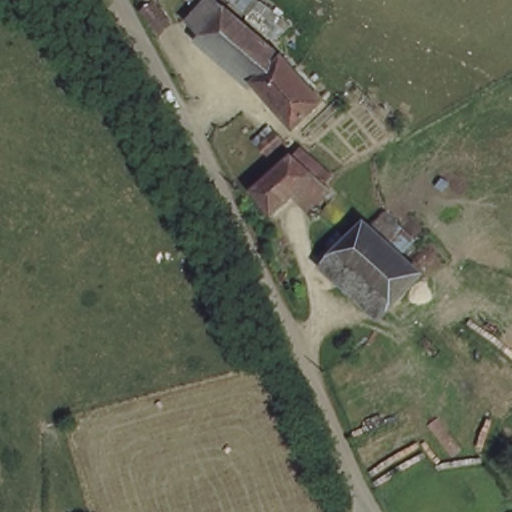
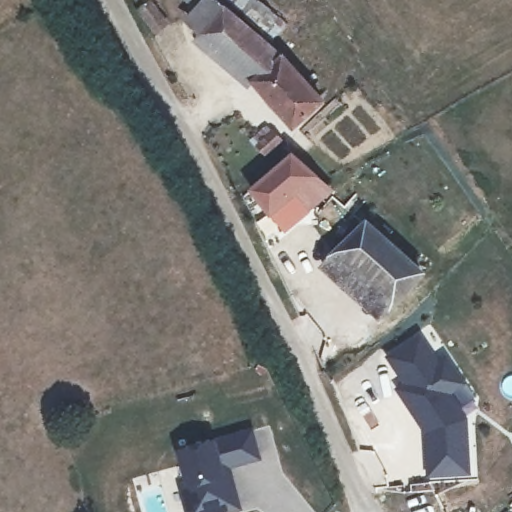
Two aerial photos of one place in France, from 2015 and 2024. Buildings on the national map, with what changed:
unchanged [(284,50),(325,96),(296,122),(191,12),(202,0),(226,0),(284,50)]
unchanged [(316,199),(302,185),(275,209),(255,185),(297,149),(317,171),(330,185),(316,199)]
unchanged [(340,247),(367,217),(424,267),(397,297),(340,247)]
unchanged [(380,315),(325,263),(340,247),(397,297),(380,315)]
new [(425,478),(422,433),(395,389),(401,383),(383,357),(417,333),(439,360),(444,356),(472,397),(460,405),(467,416),(470,475),(425,478)]
new [(184,512),(177,486),(183,484),(175,450),(214,438),(249,428),(259,461),(229,470),(239,510),(231,512),(184,512)]

